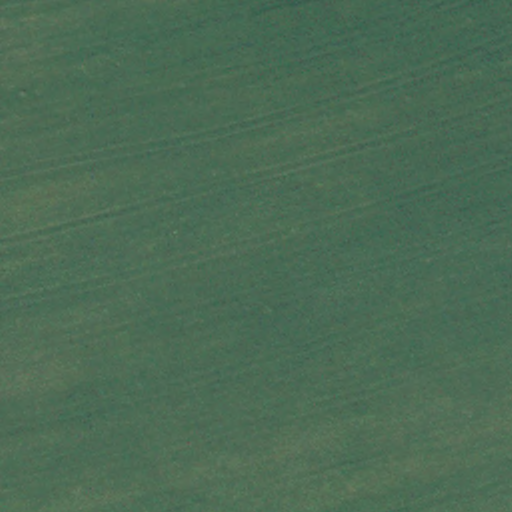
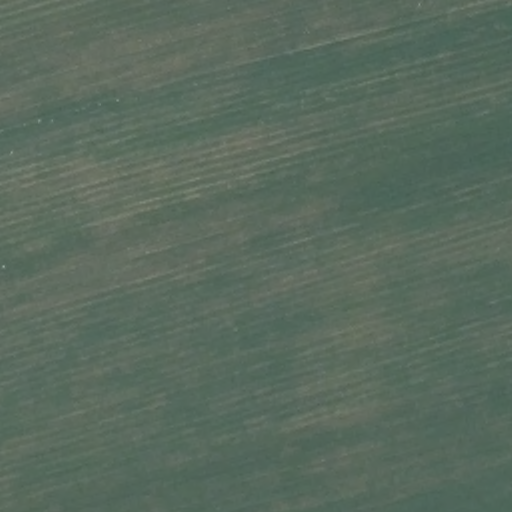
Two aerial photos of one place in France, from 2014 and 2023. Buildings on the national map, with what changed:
[]

